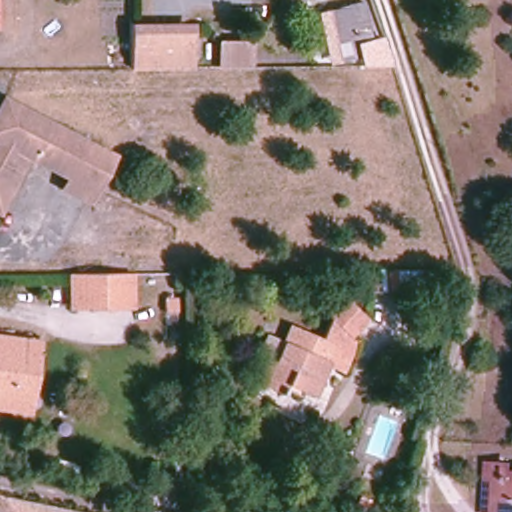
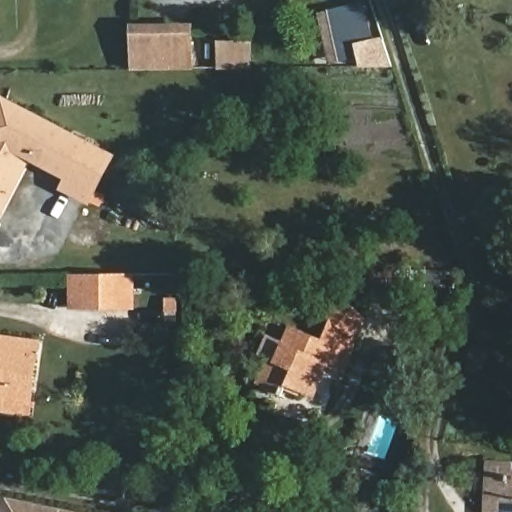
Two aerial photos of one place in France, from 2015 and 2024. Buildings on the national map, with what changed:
unchanged [(319,15),(329,12),(349,7),(348,6),(363,3),(372,43),(358,47),(361,56),(340,61),(330,64),(319,15)]
unchanged [(130,34),(191,33),(192,69),(131,70),(130,34)]
unchanged [(220,69),(219,44),(250,44),(251,68),(220,69)]
unchanged [(43,164),(27,156),(0,211),(0,108),(3,101),(60,130),(43,164)]
unchanged [(111,157),(88,202),(64,189),(69,177),(43,164),(60,130),(111,157)]
unchanged [(421,290),(373,292),(373,274),(419,273),(421,290)]
unchanged [(133,275),(133,308),(115,308),(73,308),(73,276),(115,276),(133,275)]
unchanged [(328,359),(314,390),(288,379),(284,388),(258,377),(270,351),(277,355),(292,325),(323,338),(334,315),(330,312),(344,297),(365,318),(352,333),(357,337),(351,350),(344,366),(328,359)]
unchanged [(38,344),(32,388),(18,387),(14,411),(0,409),(0,338),(38,344)]
unchanged [(504,468),(512,469),(512,512),(500,512),(500,511),(484,510),(486,460),(505,461),(504,468)]
unchanged [(63,508),(80,512),(7,512),(10,497),(63,508)]

